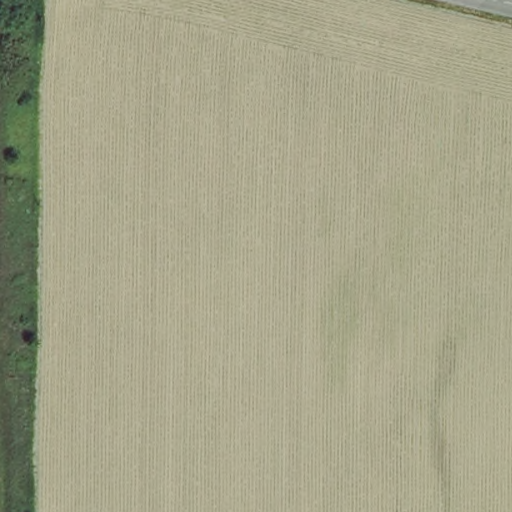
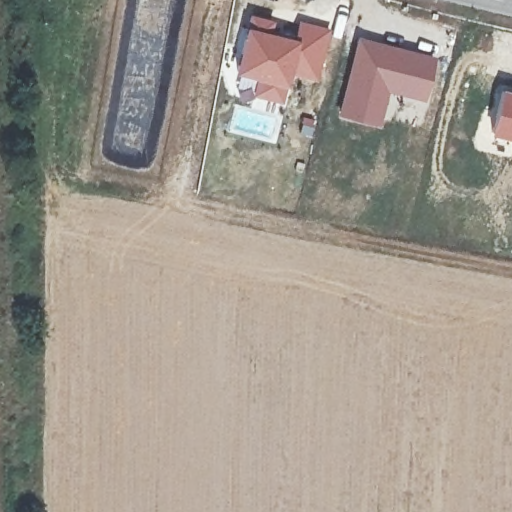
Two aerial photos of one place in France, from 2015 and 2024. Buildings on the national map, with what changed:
new [(248,13),(276,21),(273,31),(293,37),(298,19),(332,29),(319,82),(289,75),(281,104),(251,96),(254,79),(236,74),(248,13)]
new [(357,35),(438,57),(427,102),(391,92),(382,128),(337,116),(357,35)]
new [(512,89),(512,141),(489,135),(501,86),(512,89)]

